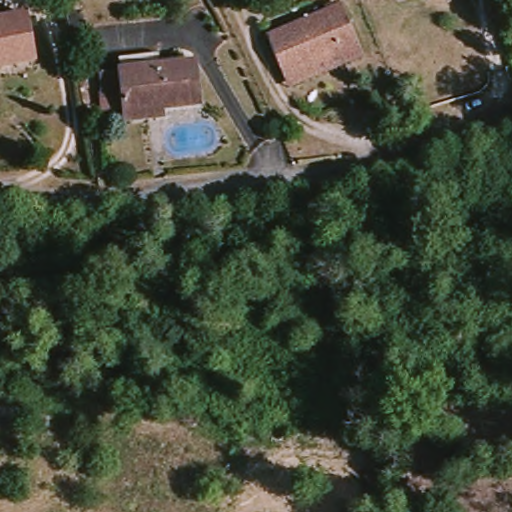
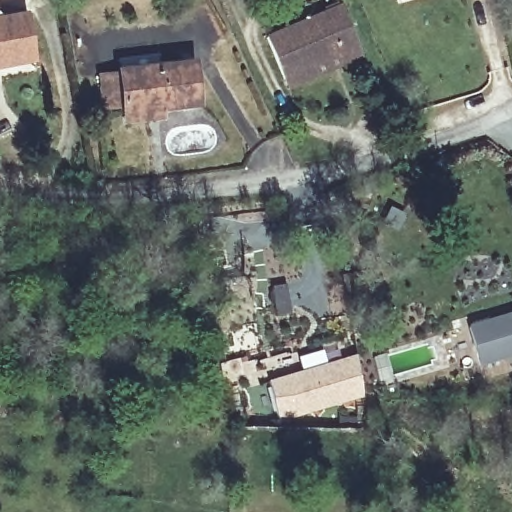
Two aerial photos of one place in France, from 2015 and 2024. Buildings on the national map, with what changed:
unchanged [(287,88),(283,78),(265,39),(340,7),(358,46),(362,56),(287,88)]
unchanged [(33,63),(1,70),(0,70),(0,20),(24,15),(33,63)]
unchanged [(127,130),(125,115),(111,117),(106,117),(103,85),(103,82),(120,80),(126,79),(126,76),(125,66),(162,62),(163,67),(164,73),(199,69),(204,111),(168,115),(169,125),(127,130)]
new [(512,313),(512,355),(484,363),(473,325),(512,313)]
new [(270,380),(356,355),(362,395),(294,416),(280,415),(270,380)]

